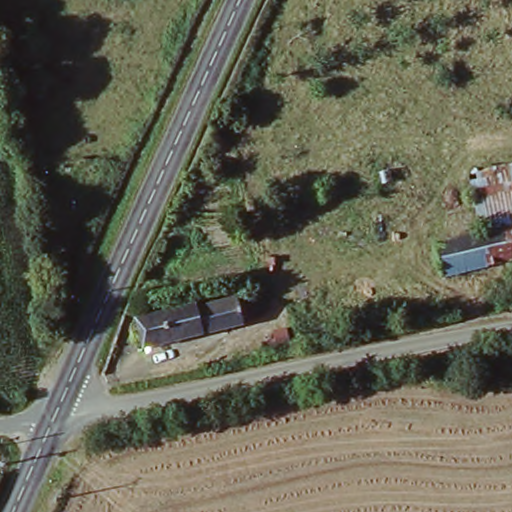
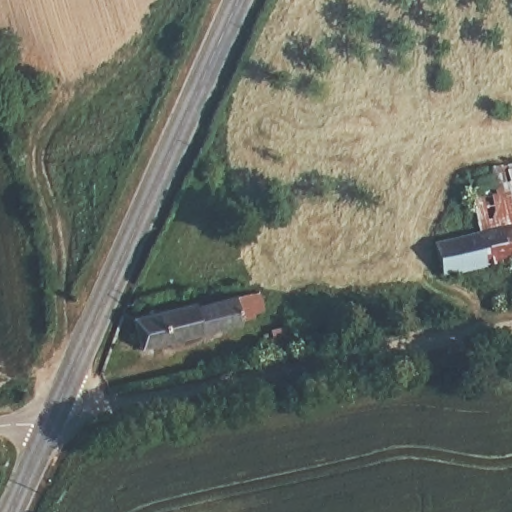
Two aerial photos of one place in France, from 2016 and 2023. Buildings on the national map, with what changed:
unchanged [(512,171),(512,258),(439,276),(431,245),(476,234),(463,175),(510,163),(512,171)]
unchanged [(191,304),(193,308),(257,292),(262,312),(253,313),(254,317),(240,321),(240,326),(138,351),(130,320),(191,304)]
unchanged [(265,358),(260,344),(275,339),(273,332),(288,329),(294,351),(265,358)]

